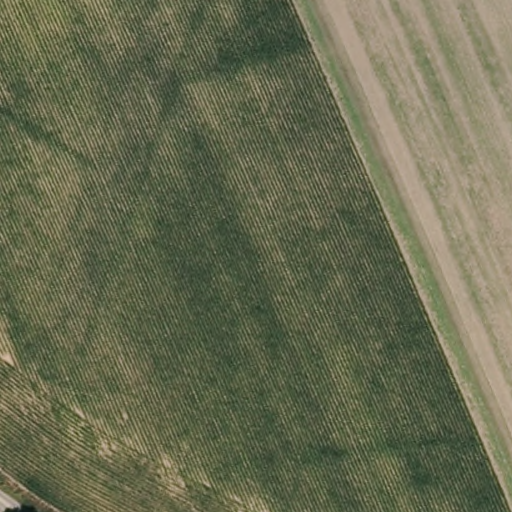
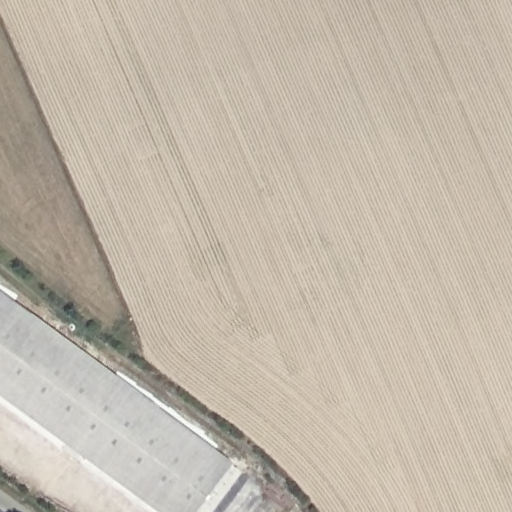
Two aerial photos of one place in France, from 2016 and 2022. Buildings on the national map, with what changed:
new [(235,462),(198,512),(157,512),(0,396),(0,290),(235,462)]

